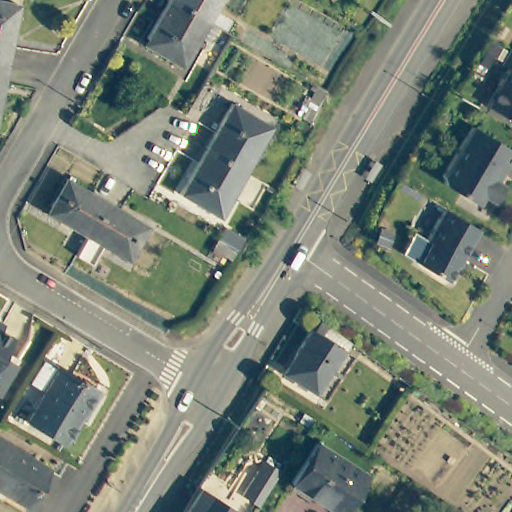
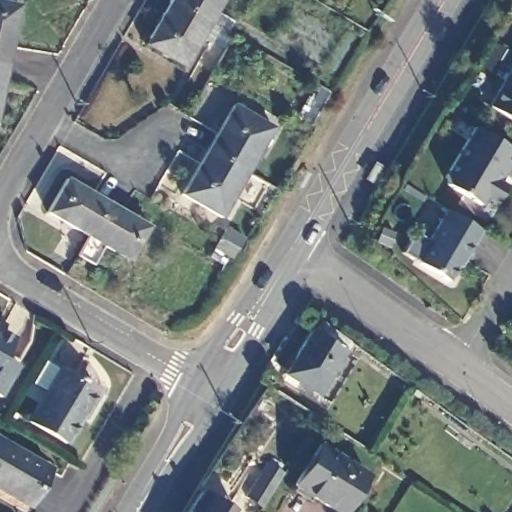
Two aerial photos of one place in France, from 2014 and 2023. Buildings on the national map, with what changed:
unchanged [(183,66),(145,43),(171,0),(172,0),(209,22),(183,66)]
unchanged [(209,22),(172,0),(222,0),(209,22)]
unchanged [(17,8),(5,70),(0,69),(0,4),(17,8)]
unchanged [(512,54),(512,66),(506,63),(512,54)]
unchanged [(5,70),(0,98),(0,69),(5,70)]
unchanged [(512,69),(512,117),(490,104),(512,69)]
unchanged [(199,149),(225,104),(263,127),(238,171),(199,149)]
unchanged [(512,168),(509,172),(505,169),(497,182),(508,188),(497,205),(487,199),(482,207),(448,187),(446,178),(477,129),(512,150),(512,168)]
unchanged [(238,171),(212,216),(173,194),(199,149),(238,171)]
unchanged [(83,240),(42,216),(61,183),(102,207),(83,240)]
unchanged [(102,207),(143,231),(124,263),(83,240),(102,207)]
unchanged [(425,262),(410,253),(423,231),(438,240),(456,210),(490,230),(468,267),(465,266),(456,281),(425,262)]
unchanged [(380,229),(392,234),(387,246),(375,241),(380,229)]
unchanged [(2,329),(0,333),(0,328),(2,329)]
unchanged [(339,347),(308,398),(273,377),(299,333),(308,339),(315,329),(339,347)]
unchanged [(11,342),(0,360),(15,369),(0,395),(0,336),(11,342)]
unchanged [(72,383),(88,393),(71,422),(57,445),(20,423),(29,406),(51,371),(72,383)]
unchanged [(42,465),(18,508),(0,498),(0,441),(42,465)]
unchanged [(337,512),(333,512),(289,483),(316,443),(362,473),(337,512)]
unchanged [(284,473),(262,507),(246,497),(268,463),(284,473)]
unchanged [(195,488),(226,508),(223,512),(181,512),(186,504),(195,488)]

